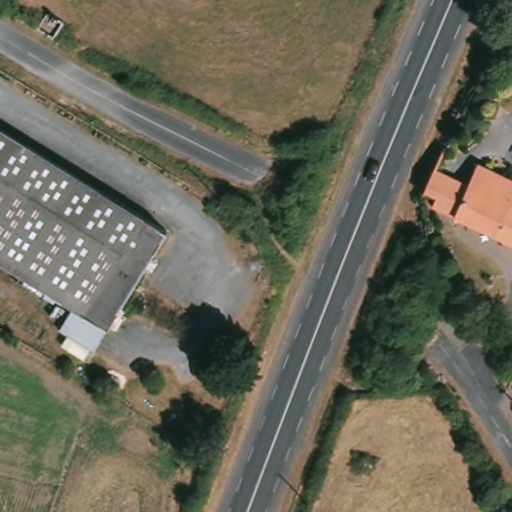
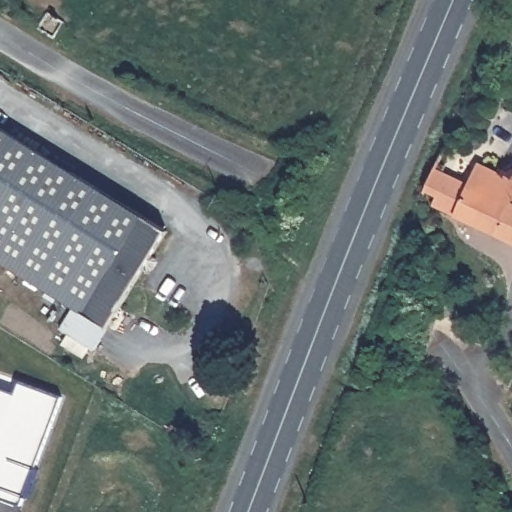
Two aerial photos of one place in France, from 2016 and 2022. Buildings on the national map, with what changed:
unchanged [(95,351),(60,330),(75,307),(0,261),(0,125),(169,230),(95,351)]
unchanged [(441,167),(473,183),(483,163),(512,177),(512,240),(460,217),(437,207),(438,204),(442,197),(430,192),(440,167),(441,167)]
new [(22,382),(62,397),(36,468),(39,469),(29,497),(26,496),(22,505),(0,497),(0,388),(18,395),(22,382)]

